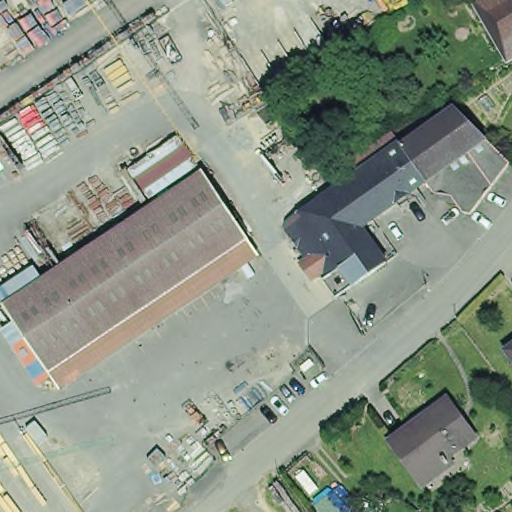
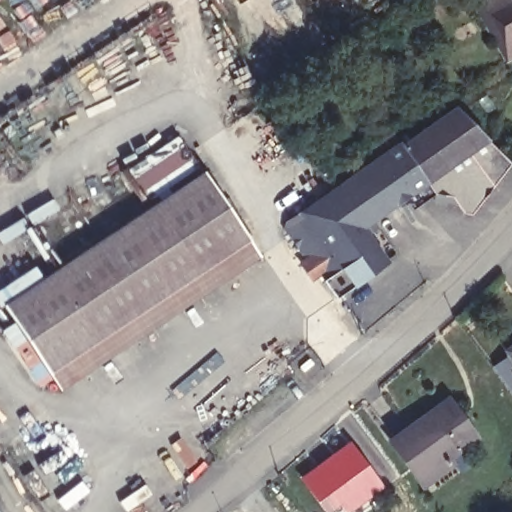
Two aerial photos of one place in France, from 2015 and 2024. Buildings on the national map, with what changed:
unchanged [(480,0),(512,0),(512,1),(487,16),(478,1),(480,0)]
unchanged [(487,16),(512,1),(512,46),(507,50),(487,16)]
unchanged [(461,209),(450,189),(433,186),(425,174),(402,140),(445,112),(457,103),(485,132),(510,155),(472,207),(461,209)]
unchanged [(335,290),(287,217),(305,205),(345,177),(402,140),(425,174),(358,221),(371,241),(383,259),(335,290)]
unchanged [(62,391),(3,301),(202,167),(261,255),(62,391)]
unchanged [(512,365),(504,355),(512,348),(512,365)]
unchanged [(470,432),(443,452),(448,460),(420,481),(387,438),(443,395),(470,432)]
new [(385,485),(348,512),(346,512),(340,504),(329,512),(324,512),(297,477),(350,439),(385,485)]

